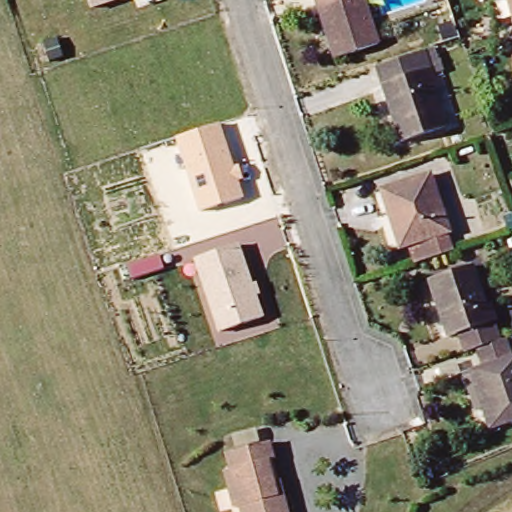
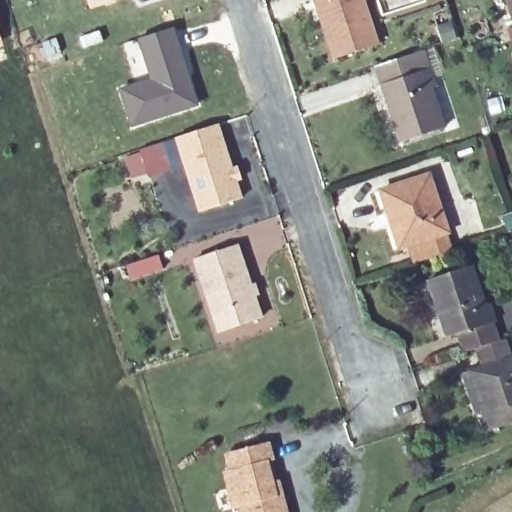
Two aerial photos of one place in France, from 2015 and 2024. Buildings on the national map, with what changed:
unchanged [(89,0),(121,0),(92,9),(89,0)]
unchanged [(378,44),(334,59),(315,0),(363,0),(378,44)]
unchanged [(507,0),(512,0),(512,15),(507,0)]
new [(150,77),(136,38),(174,26),(199,105),(130,127),(117,87),(150,77)]
new [(0,44),(0,33),(4,43),(0,44)]
unchanged [(445,128),(401,142),(376,66),(423,51),(436,86),(431,88),(445,128)]
unchanged [(244,198),(200,213),(174,136),(219,122),(244,198)]
unchanged [(387,210),(381,190),(429,175),(447,232),(440,234),(447,253),(433,257),(421,261),(415,243),(405,246),(400,248),(387,210)]
unchanged [(265,318),(219,333),(194,258),(239,244),(265,318)]
unchanged [(460,352),(453,333),(442,337),(423,280),(466,265),(480,305),(485,304),(490,321),(487,322),(493,341),(471,349),(460,352)]
unchanged [(471,370),(477,368),(471,349),(493,341),(500,339),(501,339),(507,358),(512,356),(512,420),(485,428),(478,408),(466,371),(471,370)]
unchanged [(234,508),(225,471),(231,469),(226,453),(267,442),(272,460),(267,461),(272,482),(278,481),(282,494),(286,512),(241,512),(240,506),(234,508)]

